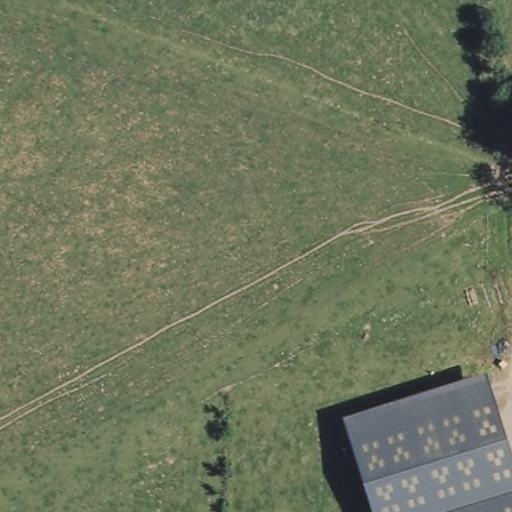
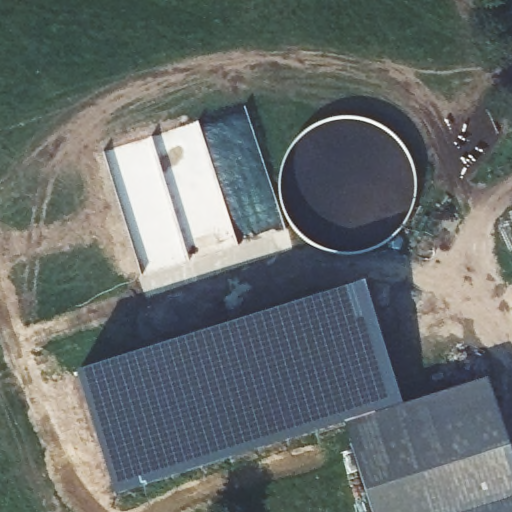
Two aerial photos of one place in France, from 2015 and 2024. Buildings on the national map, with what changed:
unchanged [(512,213),(512,227),(507,215),(512,213)]
new [(115,495),(76,375),(365,283),(402,406),(345,423),(115,495)]
unchanged [(345,423),(489,379),(512,452),(512,512),(373,512),(345,423)]

